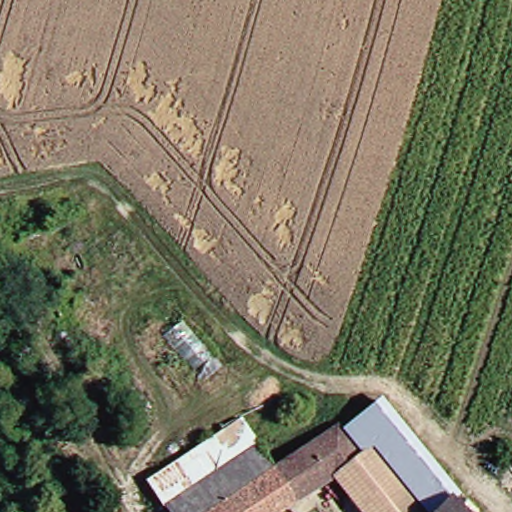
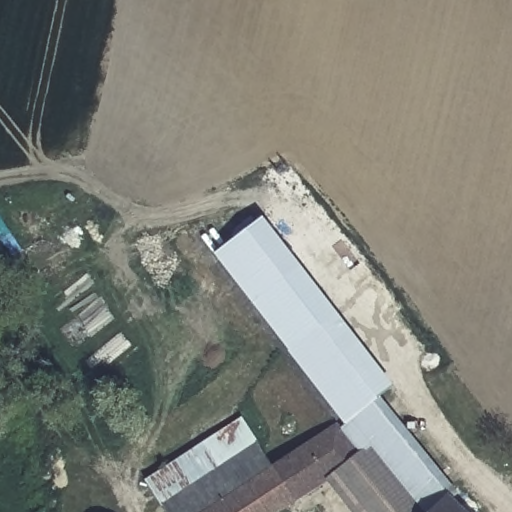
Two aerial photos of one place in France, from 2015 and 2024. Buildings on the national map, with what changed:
new [(377,399),(380,403),(350,428),(216,254),(264,217),(395,384),(377,399)]
unchanged [(370,453),(365,456),(345,431),(350,428),(380,403),(454,497),(441,512),(433,512),(380,446),(370,453)]
unchanged [(246,418),(262,441),(279,467),(301,501),(284,512),(173,512),(151,480),(246,418)]
unchanged [(341,425),(345,431),(365,456),(338,476),(301,501),(279,467),(341,425)]
unchanged [(433,512),(367,512),(338,476),(365,456),(370,453),(380,446),(433,512)]
unchanged [(72,488),(80,478),(89,485),(81,495),(72,488)]
unchanged [(470,512),(441,512),(454,497),(470,512)]

